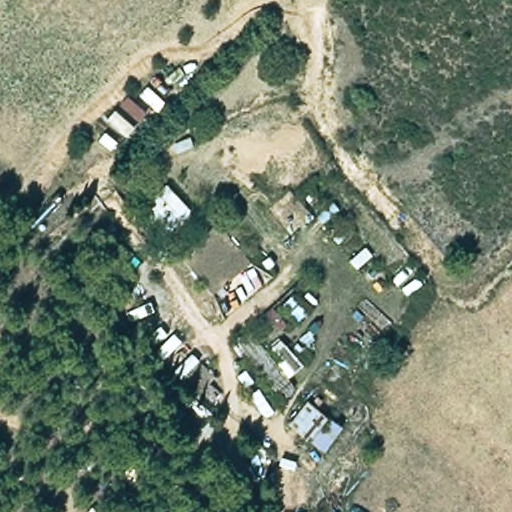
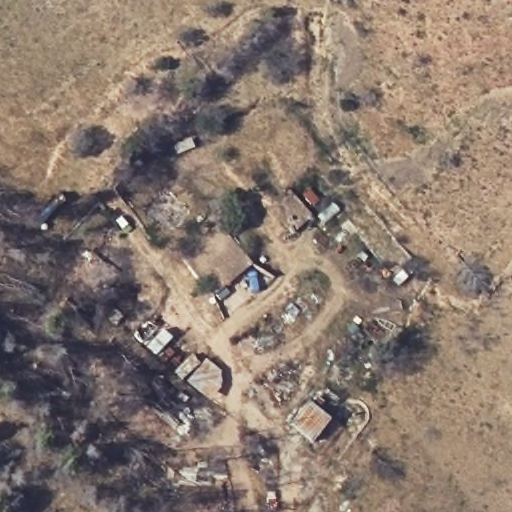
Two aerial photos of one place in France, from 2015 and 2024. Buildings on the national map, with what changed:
unchanged [(197,203),(172,230),(141,198),(170,177),(197,203)]
unchanged [(248,324),(276,360),(283,353),(272,339),(282,331),(290,342),(307,326),(323,343),(288,373),(297,385),(286,397),(236,333),(248,324)]
unchanged [(348,418),(327,450),(286,418),(309,392),(348,418)]

